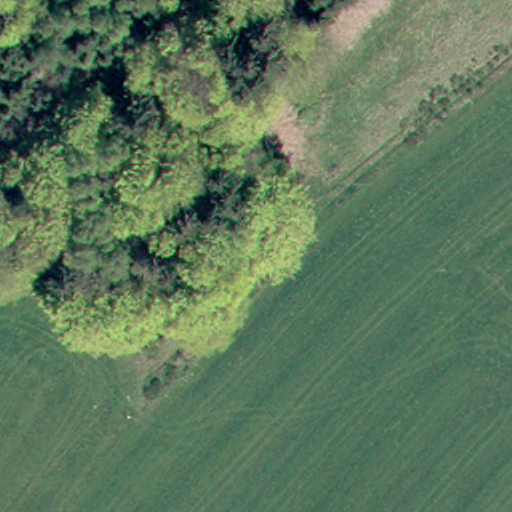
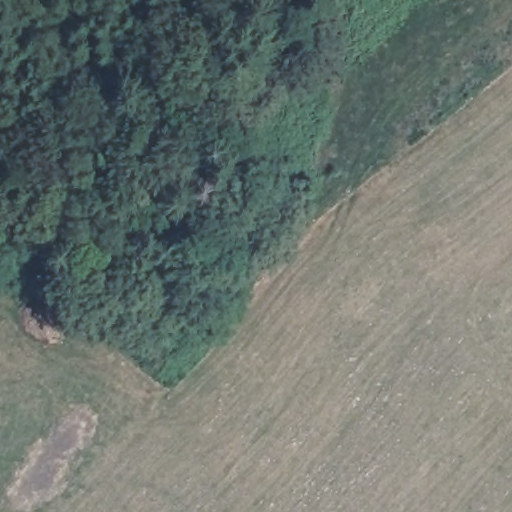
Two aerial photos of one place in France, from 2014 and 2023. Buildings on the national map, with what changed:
[]

